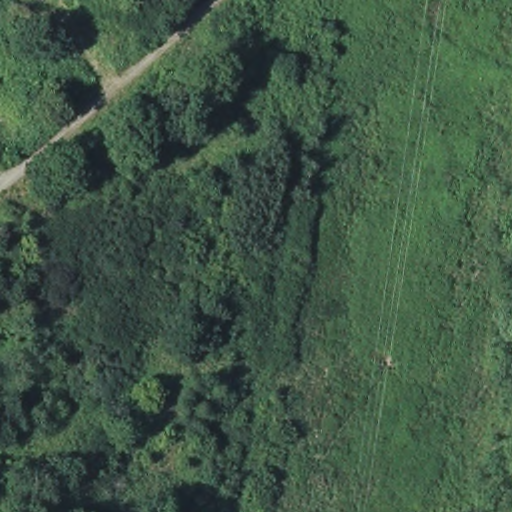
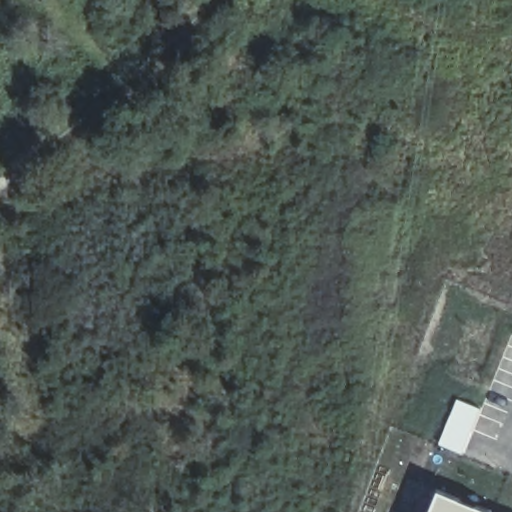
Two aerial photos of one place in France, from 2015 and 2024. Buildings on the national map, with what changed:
new [(488,512),(429,512),(438,490),(488,512)]

